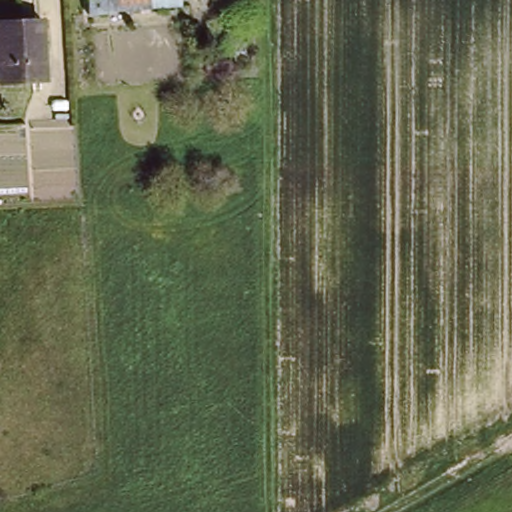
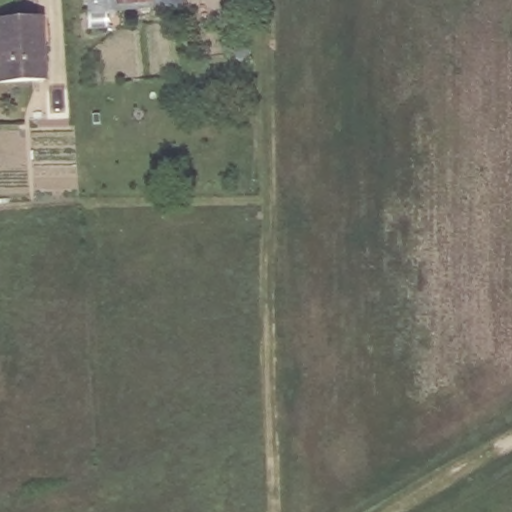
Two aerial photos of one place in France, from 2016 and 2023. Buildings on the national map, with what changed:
unchanged [(120,8),(90,10),(89,0),(180,0),(120,4),(120,8)]
unchanged [(0,16),(41,14),(43,77),(0,81),(0,16)]

